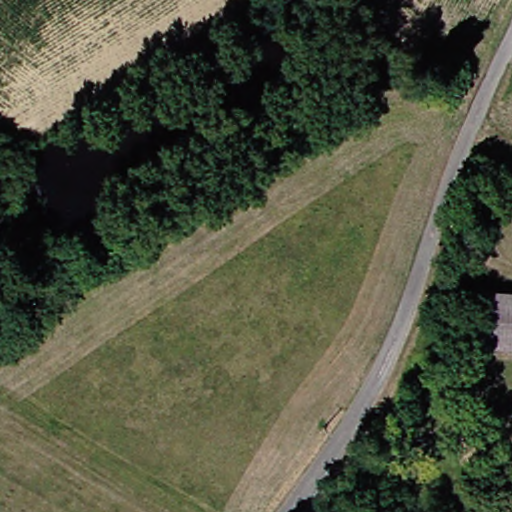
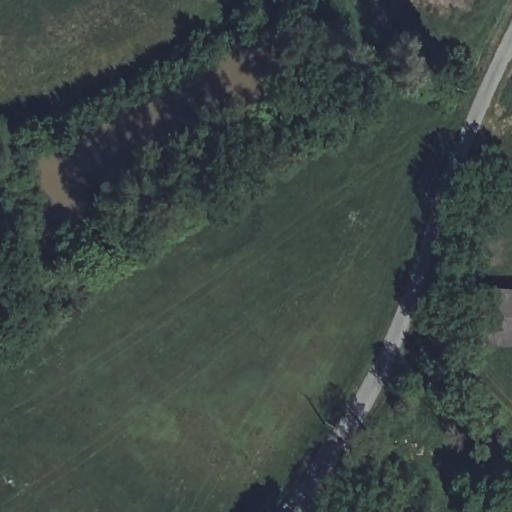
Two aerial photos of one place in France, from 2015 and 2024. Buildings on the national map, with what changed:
unchanged [(512,354),(474,353),(476,300),(512,301),(512,354)]

